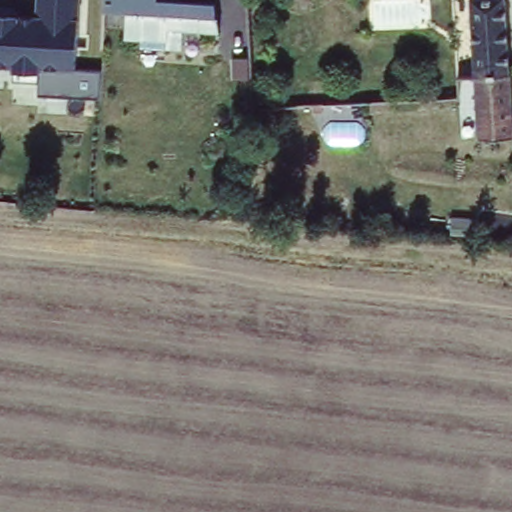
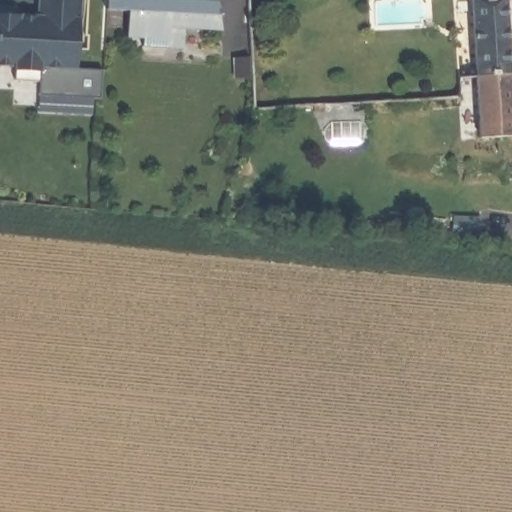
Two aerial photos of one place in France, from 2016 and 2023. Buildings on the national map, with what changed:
unchanged [(38,0),(81,0),(78,69),(101,72),(100,98),(39,93),(39,82),(14,80),(13,67),(0,65),(0,10),(38,12),(38,0)]
unchanged [(169,0),(217,4),(217,34),(198,32),(198,54),(141,51),(141,42),(124,41),(124,16),(102,14),(103,0),(169,0)]
unchanged [(512,137),(479,136),(478,129),(478,95),(475,0),(507,0),(512,99),(512,136),(512,137)]

